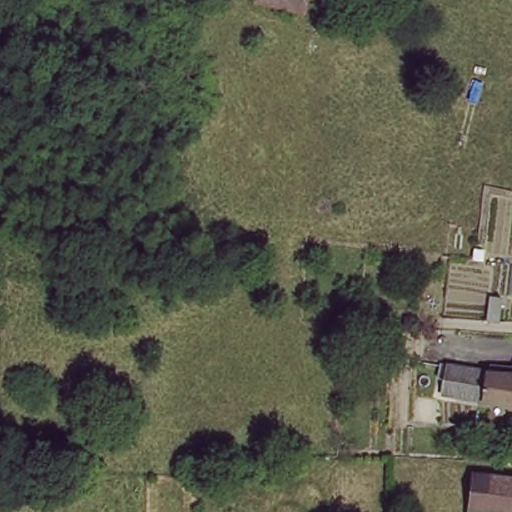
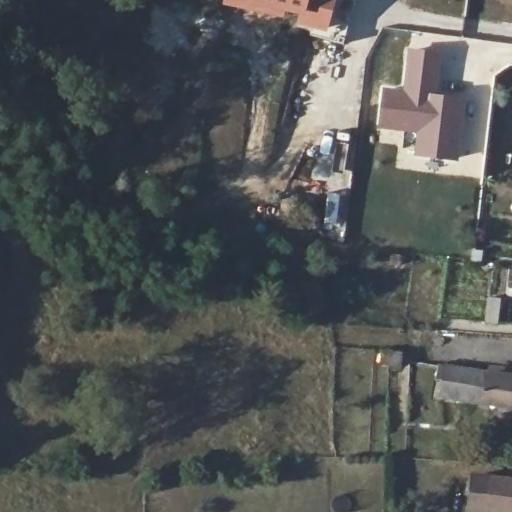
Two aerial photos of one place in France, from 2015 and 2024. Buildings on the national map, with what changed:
unchanged [(261,0),(312,0),(306,16),(261,0)]
new [(380,84),(402,85),(407,46),(442,49),(437,93),(467,97),(459,160),(413,155),(415,134),(375,128),(380,84)]
unchanged [(459,397),(450,394),(455,371),(461,372),(512,377),(512,408),(459,397)]
unchanged [(477,511),(479,506),(458,503),(461,479),(482,481),(482,477),(512,480),(512,512),(487,512),(477,511)]

